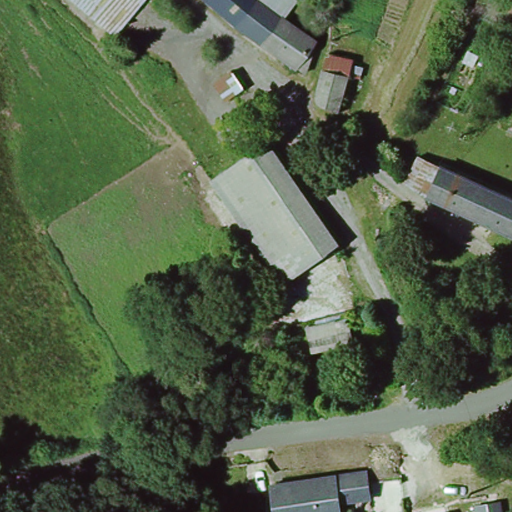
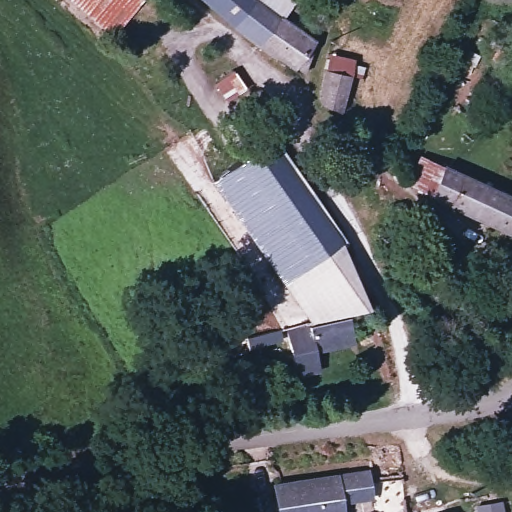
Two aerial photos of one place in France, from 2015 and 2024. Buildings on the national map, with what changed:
unchanged [(111,31),(76,0),(141,0),(111,31)]
unchanged [(243,28),(211,0),(257,0),(290,25),(307,39),(300,48),(306,53),(300,71),(290,62),(243,28)]
unchanged [(341,113),(309,104),(325,47),(353,53),(341,113)]
unchanged [(208,78),(225,66),(240,90),(222,101),(208,78)]
unchanged [(269,133),(323,220),(270,253),(217,167),(269,133)]
unchanged [(498,219),(430,181),(410,163),(421,141),(445,153),(512,188),(512,226),(498,219)]
demolished [(282,277),(277,268),(270,253),(323,220),(340,239),(340,241),(282,277)]
new [(347,313),(354,352),(316,358),(320,376),(294,380),(285,328),(308,322),(282,277),(277,268),(270,253),(323,220),(340,239),(340,241),(368,306),(347,313)]
demolished [(351,322),(353,344),(312,351),(309,325),(351,322)]
unchanged [(363,473),(367,495),(337,501),(339,512),(281,512),(276,489),(363,473)]
unchanged [(445,512),(420,512),(443,506),(445,512)]

